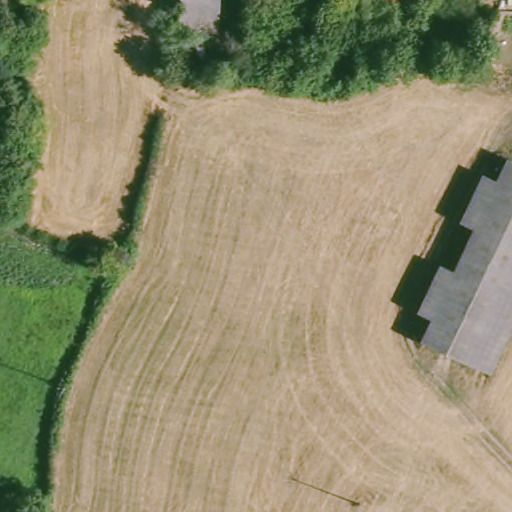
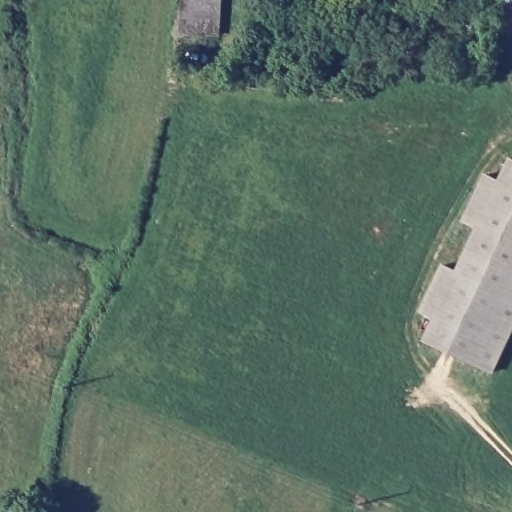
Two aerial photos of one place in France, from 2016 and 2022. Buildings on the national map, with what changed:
unchanged [(202,0),(224,0),(220,39),(198,36),(202,0)]
unchanged [(512,175),(512,343),(498,370),(430,336),(440,315),(428,308),(453,262),(464,267),(488,222),(476,216),(501,170),(512,175)]

